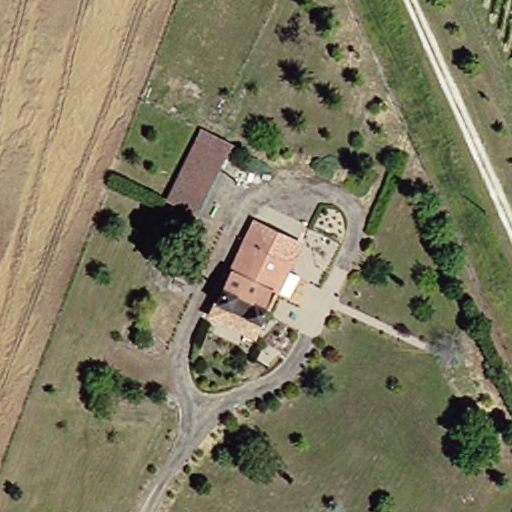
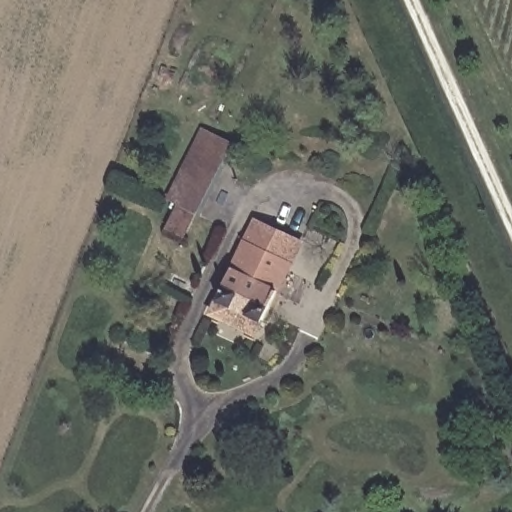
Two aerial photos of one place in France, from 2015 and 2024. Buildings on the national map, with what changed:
unchanged [(156,229),(195,151),(181,146),(190,126),(223,139),(175,236),(156,229)]
unchanged [(240,226),(249,209),(295,230),(287,249),(240,226)]
unchanged [(205,300),(211,287),(240,226),(287,249),(257,308),(250,322),(205,300)]

